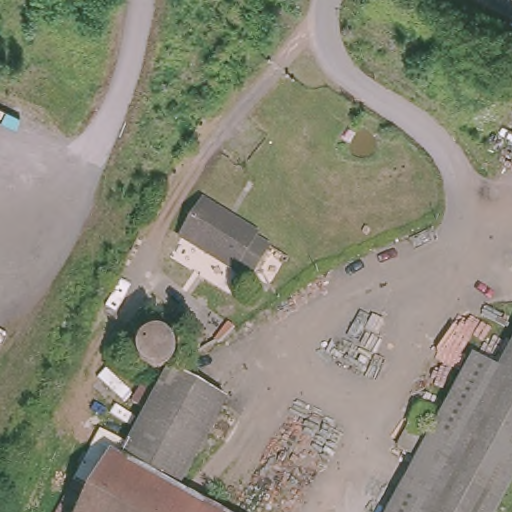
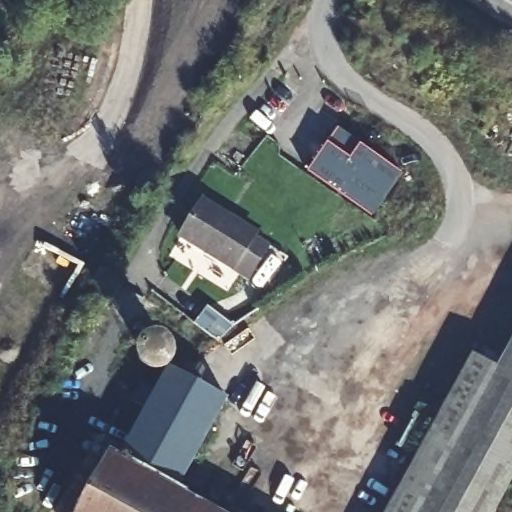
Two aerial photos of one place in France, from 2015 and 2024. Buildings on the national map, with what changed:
new [(338,125),(362,142),(402,172),(373,215),(309,171),(338,125)]
unchanged [(229,269),(230,267),(182,235),(202,201),(252,231),(250,234),(265,244),(247,272),(243,279),(229,269)]
demolished [(348,317),(372,314),(375,353),(358,354),(357,332),(350,333),(348,317)]
unchanged [(469,353),(495,366),(512,336),(512,484),(497,512),(382,512),(469,353)]
unchanged [(181,487),(227,512),(73,512),(108,447),(118,452),(165,368),(225,400),(181,487)]
demolished [(409,401),(387,411),(373,388),(367,378),(382,373),(392,369),(409,401)]
unchanged [(127,394),(137,377),(152,385),(142,403),(127,394)]
unchanged [(97,419),(125,434),(115,450),(107,446),(70,512),(46,512),(97,419)]

